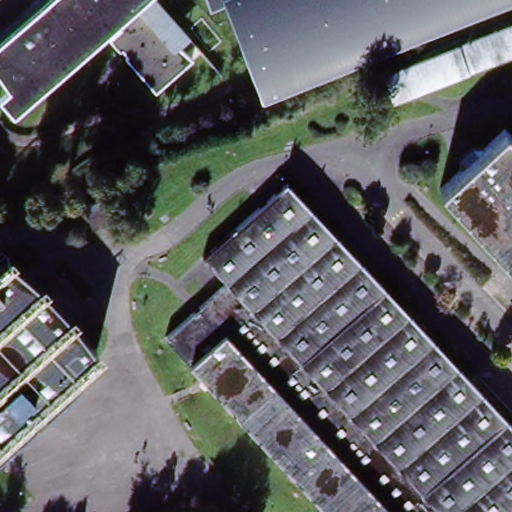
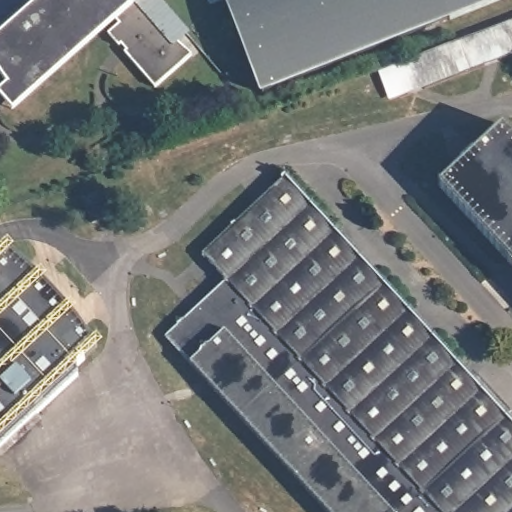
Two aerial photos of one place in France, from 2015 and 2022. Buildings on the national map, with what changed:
unchanged [(19,99),(0,74),(0,37),(42,0),(131,0),(130,1),(187,61),(154,90),(108,36),(117,29),(109,19),(19,99)]
unchanged [(512,4),(255,101),(221,1),(205,10),(201,0),(512,0),(512,4)]
unchanged [(512,21),(512,55),(416,92),(402,86),(393,65),(512,21)]
unchanged [(512,128),(512,263),(445,184),(512,128)]
unchanged [(287,180),(512,428),(512,512),(330,512),(167,332),(231,273),(211,250),(287,180)]
unchanged [(0,447),(0,255),(90,357),(65,380),(70,385),(0,447)]

